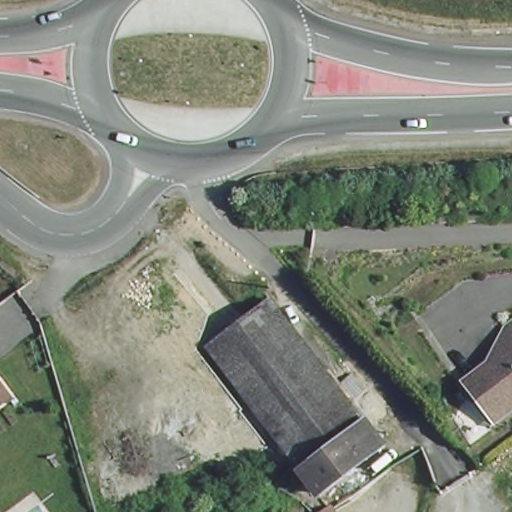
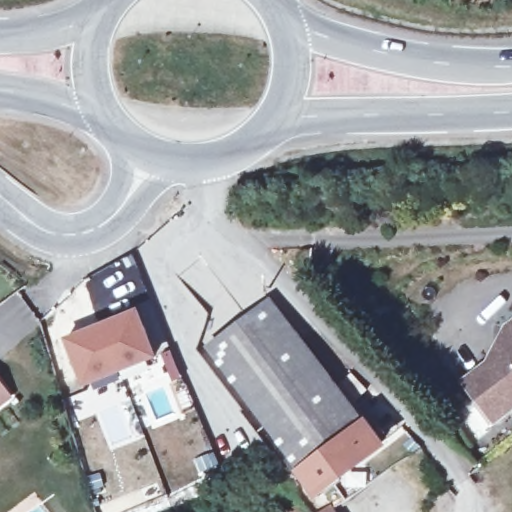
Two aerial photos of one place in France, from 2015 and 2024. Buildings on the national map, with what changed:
unchanged [(257,424),(262,419),(209,349),(274,303),(370,430),(378,425),(387,437),(379,443),(382,446),(320,495),(286,451),(280,455),(257,424)]
new [(136,311),(153,357),(117,370),(100,323),(136,311)]
new [(64,337),(100,323),(117,370),(81,382),(64,337)]
unchanged [(496,412),(500,418),(481,429),(467,404),(471,402),(457,377),(511,348),(506,337),(504,333),(512,328),(512,403),(496,412)]
unchanged [(14,398),(0,408),(0,380),(14,398)]
unchanged [(196,440),(209,437),(212,448),(199,451),(196,440)]

